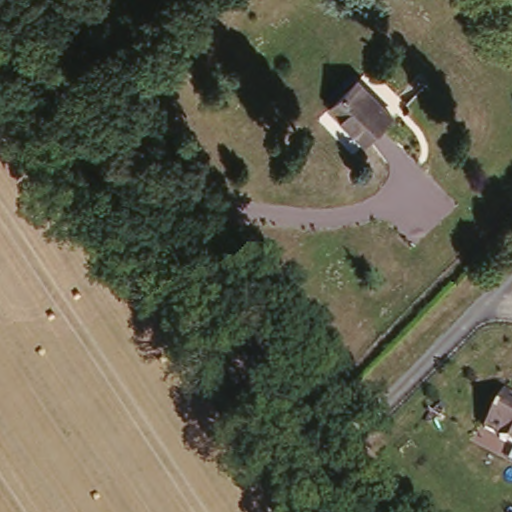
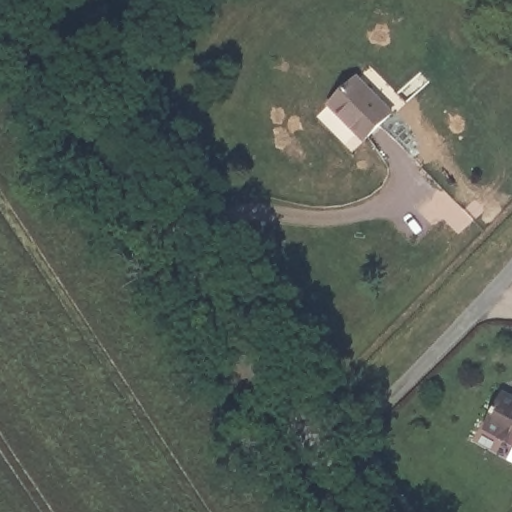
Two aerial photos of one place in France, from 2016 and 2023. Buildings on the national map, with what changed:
unchanged [(360,76),(393,111),(368,134),(335,98),(360,76)]
unchanged [(506,389),(512,392),(512,437),(487,425),(506,389)]

